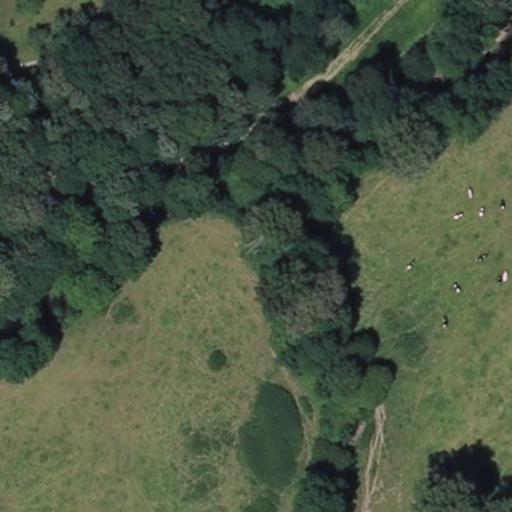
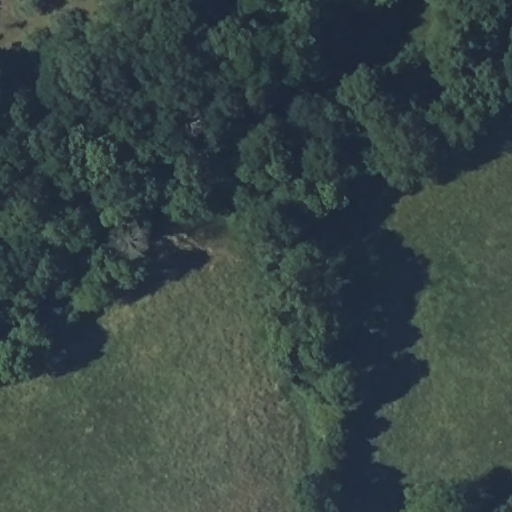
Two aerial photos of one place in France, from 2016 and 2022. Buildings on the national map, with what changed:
[]

